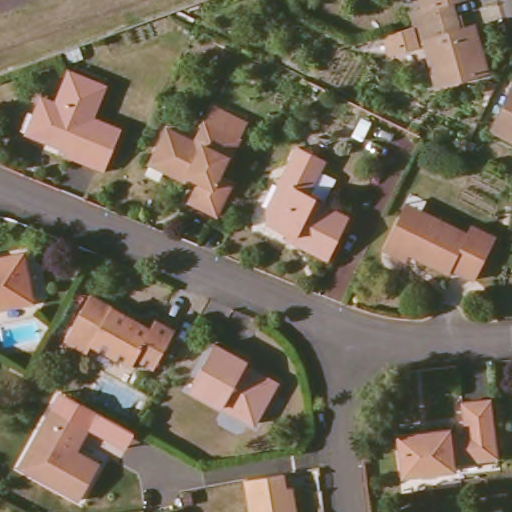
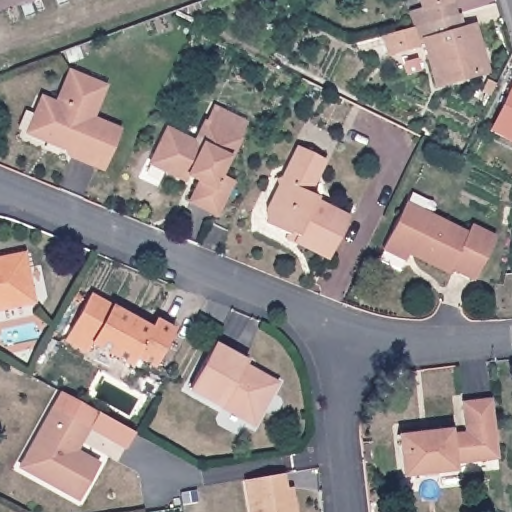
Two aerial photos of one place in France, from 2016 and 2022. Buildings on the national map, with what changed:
unchanged [(421,7),(419,0),(450,0),(454,14),(413,25),(410,10),(421,7)]
unchanged [(413,25),(454,14),(458,28),(472,25),(485,72),(436,86),(423,41),(392,50),(389,50),(384,33),(387,32),(413,25)]
unchanged [(112,144),(102,167),(69,153),(66,146),(68,141),(62,138),(61,142),(42,135),(26,127),(32,114),(42,93),(55,99),(69,68),(105,84),(91,115),(115,126),(119,128),(112,144)]
unchanged [(491,130),(512,85),(512,141),(491,130)]
unchanged [(187,187),(162,175),(150,169),(156,156),(157,156),(169,129),(197,142),(207,122),(209,122),(216,107),(225,111),(250,124),(233,160),(231,159),(222,175),(237,182),(221,215),(193,201),(202,181),(200,180),(192,176),(187,187)]
unchanged [(291,235),(270,224),(270,212),(301,149),(327,161),(311,195),(319,197),(317,202),(350,217),(331,260),(296,242),(289,239),(291,235)]
unchanged [(467,225),(493,237),(472,280),(450,270),(447,275),(412,258),(415,254),(409,250),(403,261),(381,250),(397,215),(403,205),(420,212),(464,234),(467,225)]
unchanged [(0,312),(0,261),(24,258),(26,272),(31,272),(35,298),(27,308),(0,312)]
unchanged [(156,318),(176,328),(156,364),(139,355),(134,364),(94,342),(89,351),(67,338),(91,295),(129,315),(126,320),(134,325),(137,320),(151,327),(156,318)]
unchanged [(251,424),(186,388),(211,344),(244,361),(239,369),(250,375),(256,373),(273,382),(251,424)]
unchanged [(19,469),(56,388),(134,429),(122,450),(87,429),(80,443),(73,440),(67,452),(97,468),(78,500),(19,469)]
unchanged [(452,459),(454,468),(401,474),(396,431),(449,426),(449,432),(464,430),(460,396),(491,393),(498,454),(452,459)]
unchanged [(247,479),(286,472),(288,488),(295,487),(298,512),(252,512),(247,479)]

